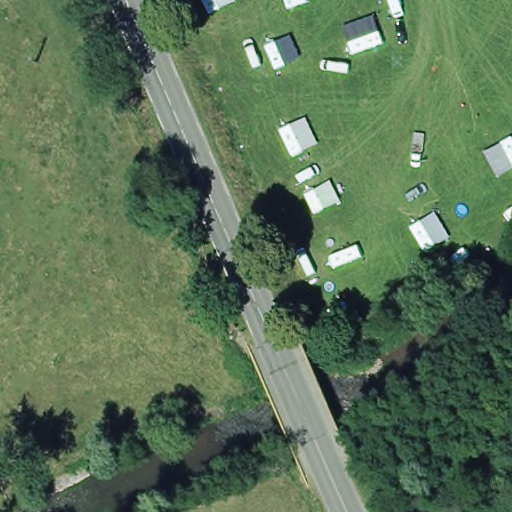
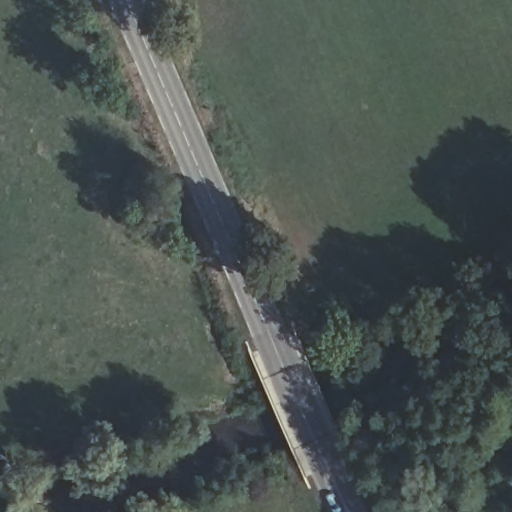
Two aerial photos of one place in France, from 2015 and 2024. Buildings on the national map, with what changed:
unchanged [(305,258),(292,264),(285,250),(300,243),(305,258)]

